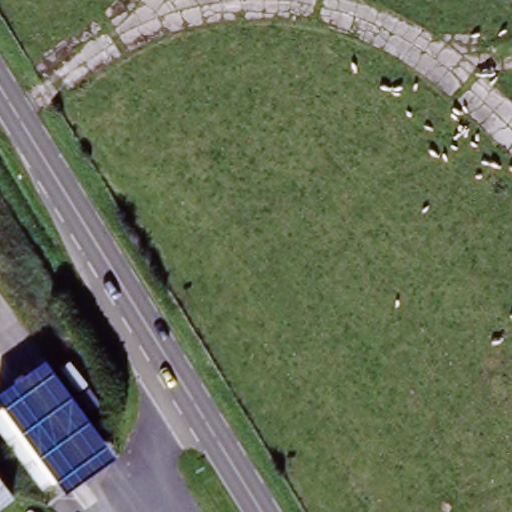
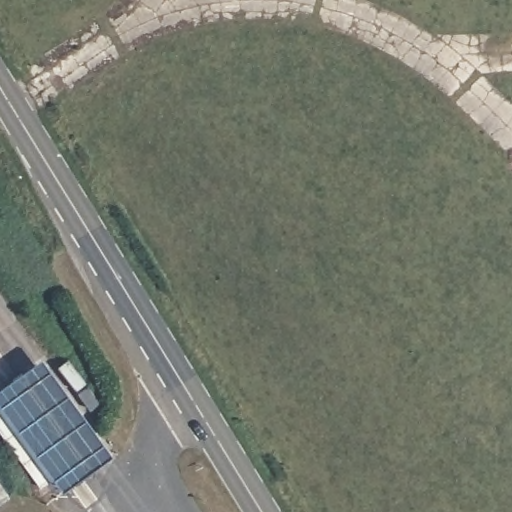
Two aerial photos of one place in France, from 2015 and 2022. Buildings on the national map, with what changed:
unchanged [(113,452),(87,471),(18,378),(43,358),(113,452)]
unchanged [(87,471),(66,487),(0,398),(0,392),(18,378),(87,471)]
unchanged [(22,496),(0,512),(0,464),(22,496)]

